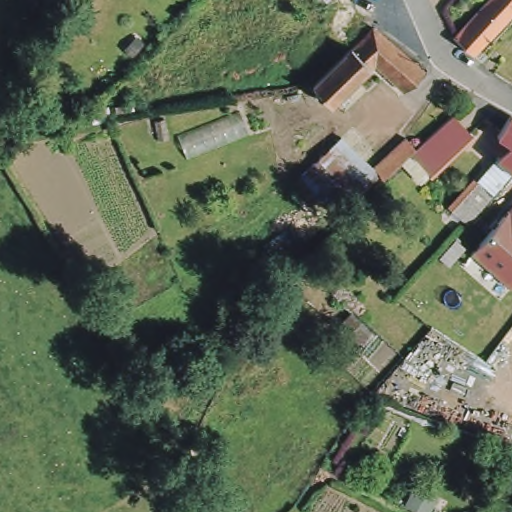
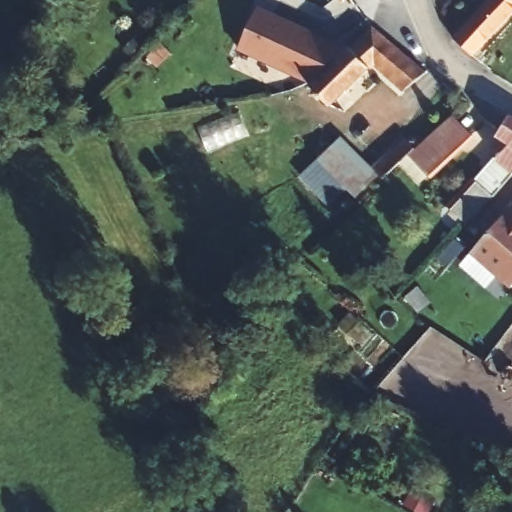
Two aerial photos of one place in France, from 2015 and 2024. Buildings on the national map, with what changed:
unchanged [(463,51),(447,32),(480,0),(512,0),(512,2),(463,51)]
new [(311,82),(238,49),(258,6),(343,45),(311,82)]
unchanged [(310,85),(356,31),(358,32),(370,17),(371,16),(430,62),(408,86),(375,57),(332,105),(310,85)]
unchanged [(505,142),(498,137),(505,128),(499,123),(512,109),(512,176),(511,176),(492,158),(505,142)]
unchanged [(418,147),(450,111),(468,130),(424,178),(405,160),(418,147)]
unchanged [(378,170),(409,139),(418,147),(405,160),(400,166),(386,179),(382,175),(360,199),(305,145),(327,121),(378,170)]
unchanged [(511,176),(504,185),(502,184),(477,213),(461,199),(492,158),(511,176)]
unchanged [(506,292),(466,257),(503,215),(512,205),(512,286),(506,292)]

